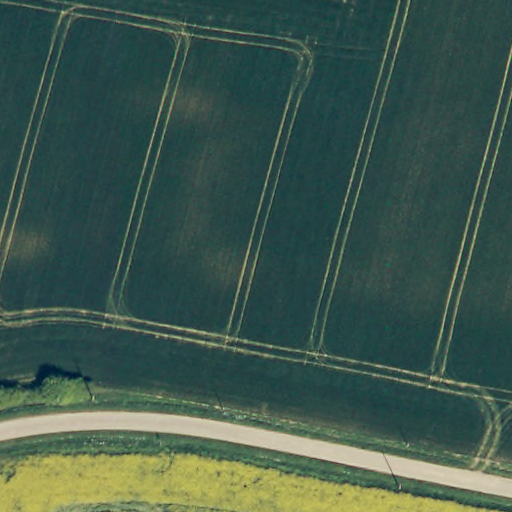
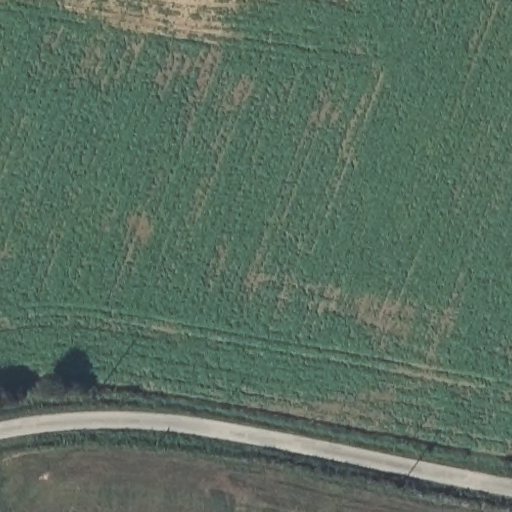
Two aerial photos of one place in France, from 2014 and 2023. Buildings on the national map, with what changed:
[]

